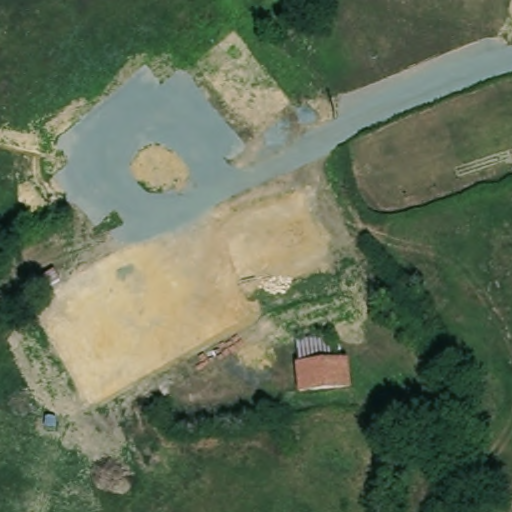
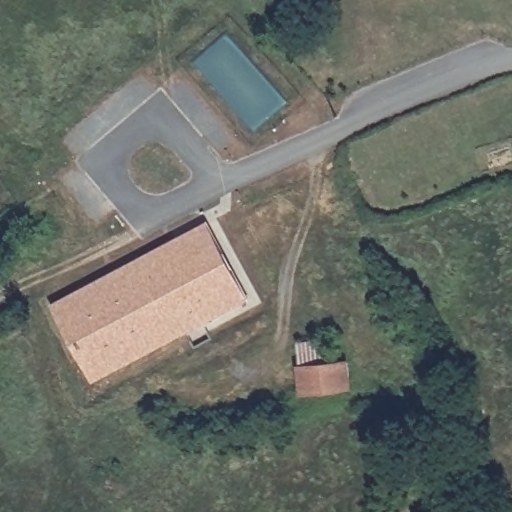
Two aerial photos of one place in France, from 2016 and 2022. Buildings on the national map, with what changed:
demolished [(323,87),(345,110),(347,112),(333,123),(312,100),(323,87)]
demolished [(303,192),(324,272),(242,292),(223,212),(303,192)]
new [(250,300),(93,383),(50,304),(207,220),(250,300)]
unchanged [(302,362),(298,336),(329,332),(333,357),(346,355),(351,382),(301,388),(296,362),(302,362)]

